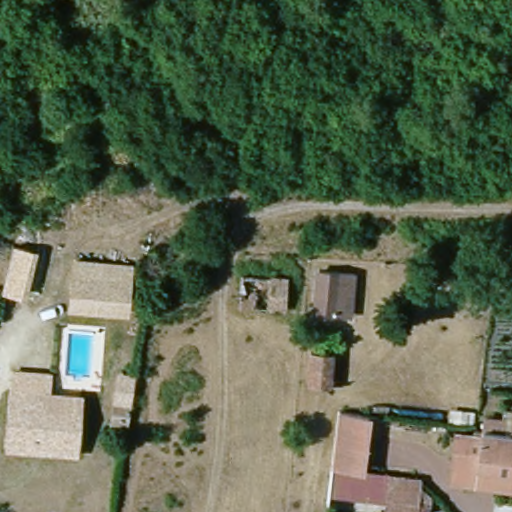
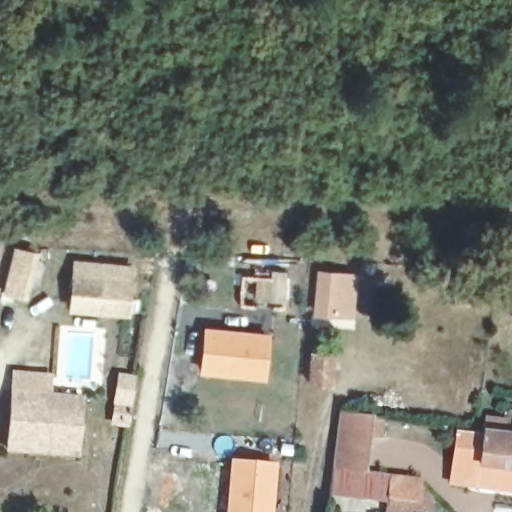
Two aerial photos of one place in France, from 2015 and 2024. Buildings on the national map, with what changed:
new [(39,252),(27,303),(2,297),(14,248),(39,252)]
unchanged [(140,290),(137,316),(82,309),(82,306),(88,264),(142,271),(140,290)]
unchanged [(341,270),(338,282),(371,285),(368,301),(355,299),(352,311),(316,306),(321,264),(341,270)]
unchanged [(292,312),(244,306),(247,276),(295,282),(292,312)]
new [(203,326),(271,333),(266,381),(199,374),(203,326)]
unchanged [(312,353),(332,355),(328,387),(308,386),(312,353)]
unchanged [(7,448),(12,411),(14,391),(17,371),(47,375),(45,395),(50,395),(87,399),(84,417),(78,457),(7,448)]
unchanged [(134,402),(119,400),(122,375),(137,377),(134,402)]
unchanged [(131,423),(116,421),(118,406),(132,408),(131,423)]
unchanged [(453,481),(457,431),(477,433),(478,425),(479,415),(496,416),(497,416),(497,427),(508,428),(510,408),(512,408),(512,486),(489,484),(453,481)]
unchanged [(356,413),(381,417),(379,432),(368,430),(362,468),(362,472),(335,468),(342,411),(356,413)]
new [(279,463),(275,512),(225,512),(229,458),(279,463)]
unchanged [(381,507),(382,493),(357,490),(356,501),(330,498),(335,468),(362,472),(362,468),(386,470),(416,473),(413,496),(412,510),(381,507)]

